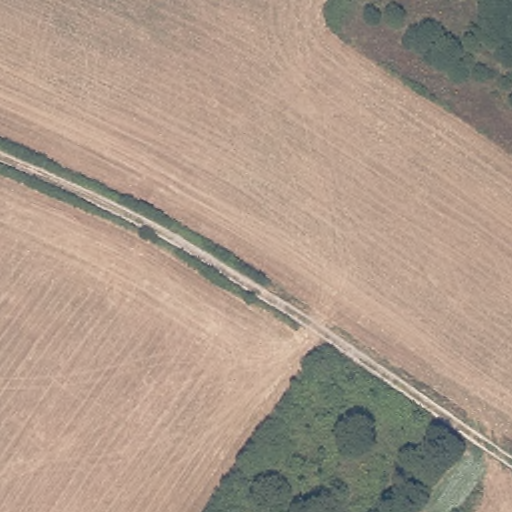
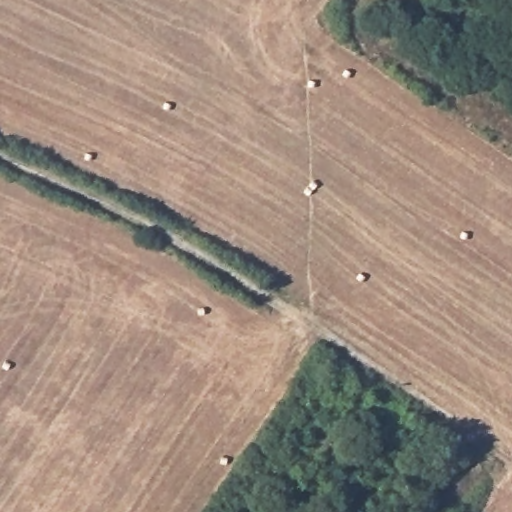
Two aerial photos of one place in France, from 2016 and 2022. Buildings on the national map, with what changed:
[]

